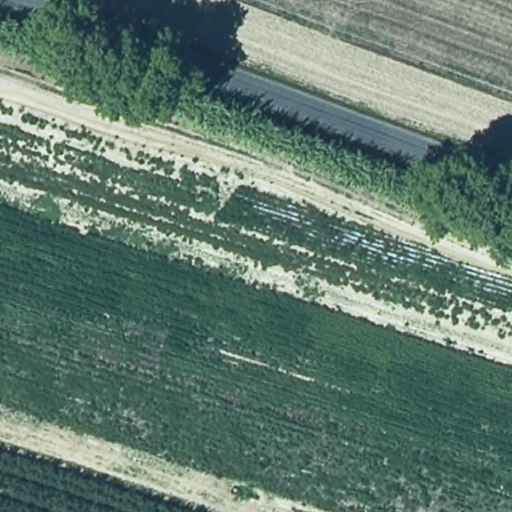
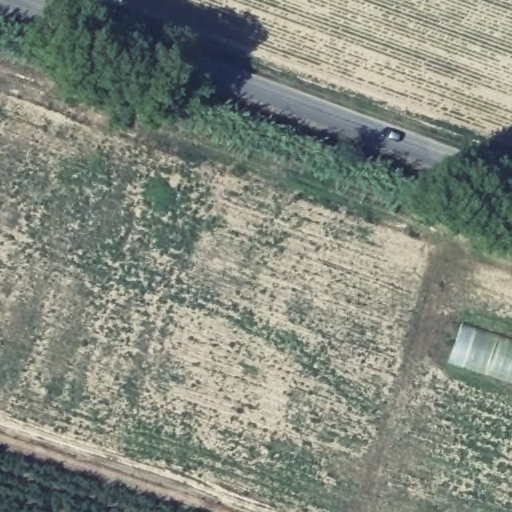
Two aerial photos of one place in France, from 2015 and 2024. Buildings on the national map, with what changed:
new [(512,385),(447,363),(462,327),(512,342),(512,385)]

